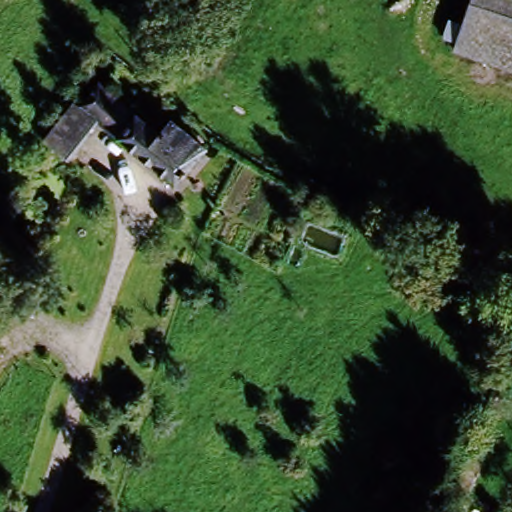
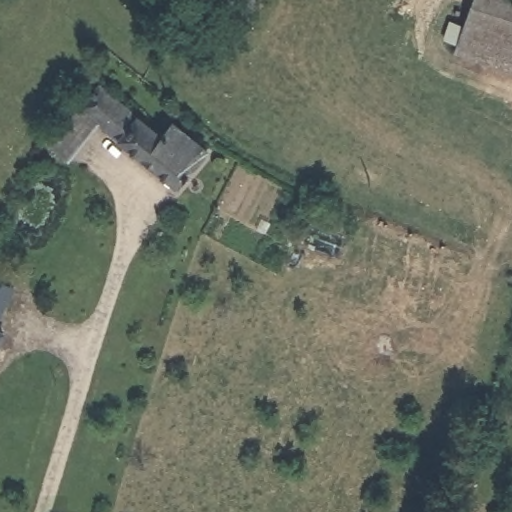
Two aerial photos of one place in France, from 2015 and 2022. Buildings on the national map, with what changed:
unchanged [(468,0),(512,0),(512,62),(454,40),(468,0)]
unchanged [(90,84),(110,99),(119,93),(139,110),(132,118),(165,145),(174,136),(201,158),(172,194),(68,108),(90,84)]
unchanged [(37,171),(62,118),(84,126),(60,182),(37,171)]
unchanged [(10,259),(0,282),(0,255),(10,259)]

